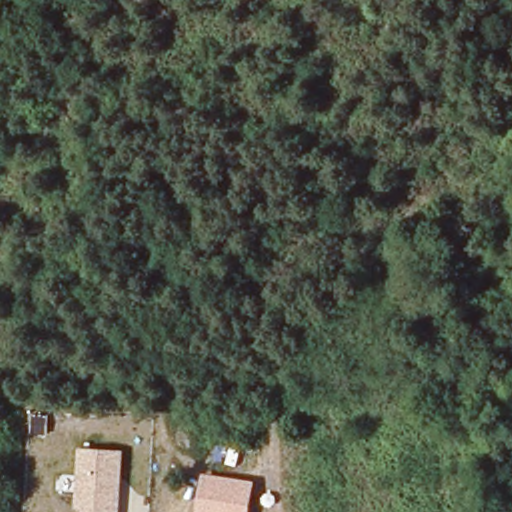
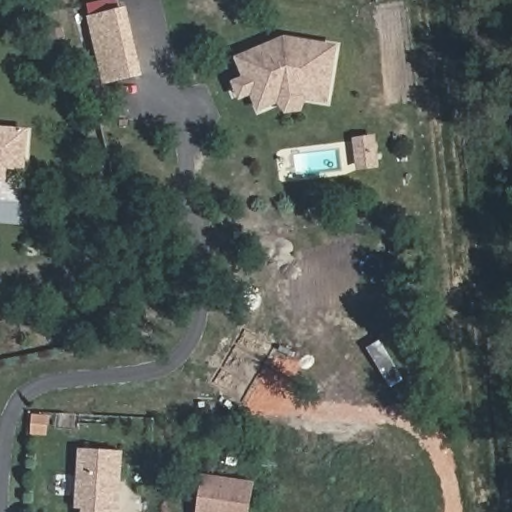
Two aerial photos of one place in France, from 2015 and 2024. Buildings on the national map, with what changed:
new [(104,85),(87,15),(128,6),(145,75),(104,85)]
new [(308,101),(302,111),(284,113),(279,104),(258,112),(253,96),(240,101),(233,81),(244,76),(237,56),(284,36),(339,45),(329,103),(308,101)]
new [(26,170),(7,169),(7,181),(0,181),(0,125),(29,128),(26,170)]
new [(381,168),(358,171),(353,138),(376,134),(381,168)]
unchanged [(84,510),(77,510),(80,450),(125,452),(121,512),(83,512),(84,510)]
unchanged [(205,476),(255,483),(250,512),(199,512),(205,476)]

